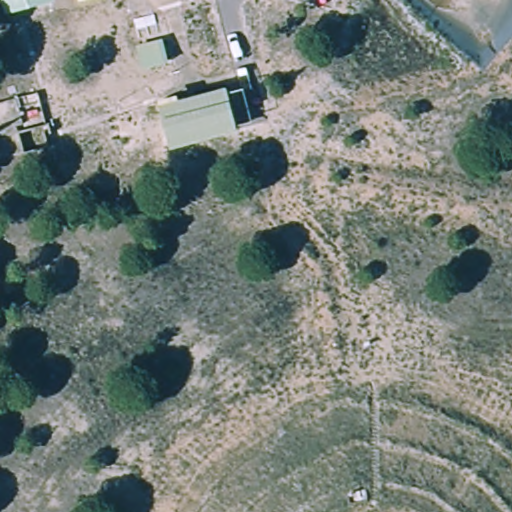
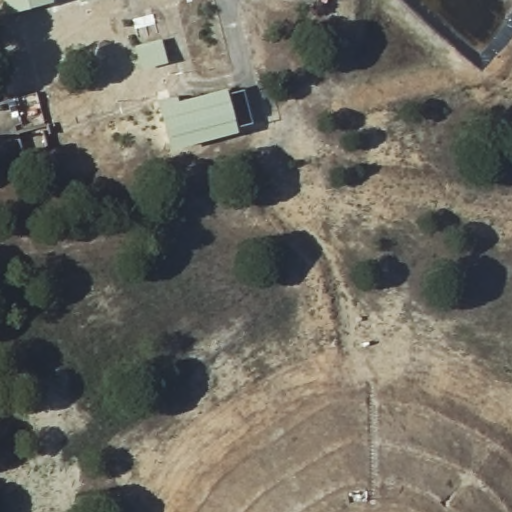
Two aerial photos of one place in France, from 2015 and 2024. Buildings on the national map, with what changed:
unchanged [(0,0),(54,0),(55,2),(4,15),(0,0)]
unchanged [(80,3),(79,0),(88,0),(80,3)]
unchanged [(241,127),(171,152),(158,106),(228,86),(241,127)]
unchanged [(46,122),(53,146),(0,162),(0,102),(16,97),(25,128),(46,122)]

